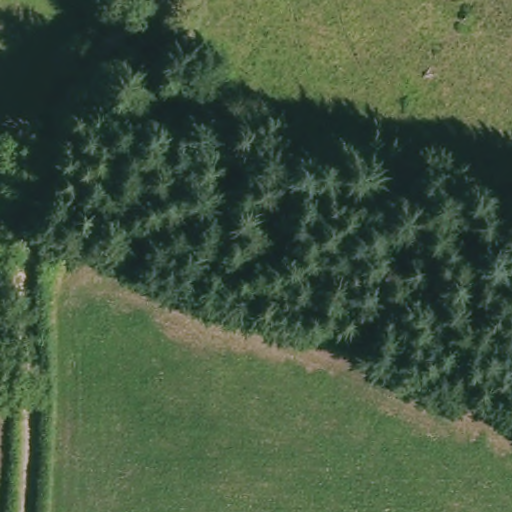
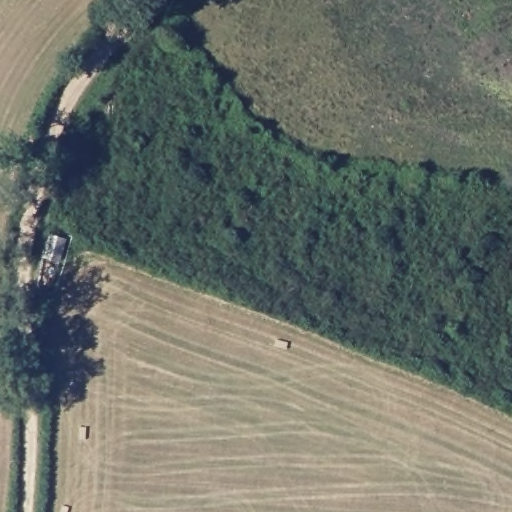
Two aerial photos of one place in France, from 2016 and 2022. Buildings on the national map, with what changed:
unchanged [(67,236),(61,256),(44,253),(50,229),(67,236)]

